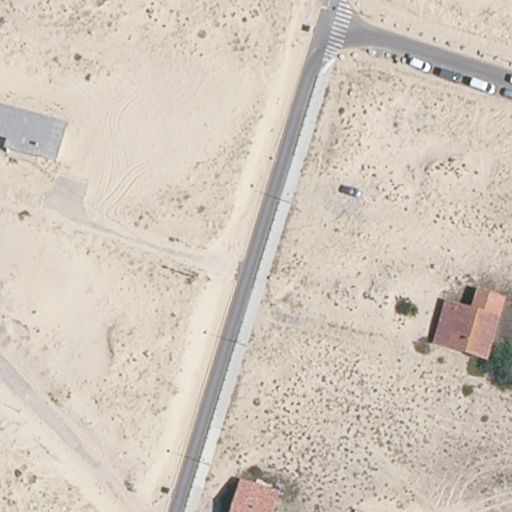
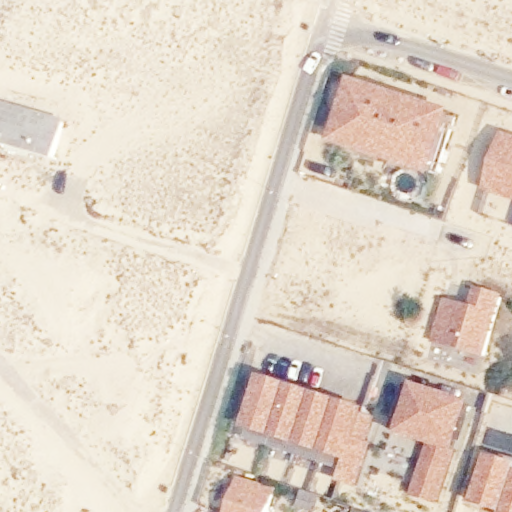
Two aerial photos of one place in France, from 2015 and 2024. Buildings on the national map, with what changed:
new [(339,149),(357,91),(451,120),(432,178),(407,170),(365,156),(339,149)]
unchanged [(59,125),(50,160),(2,150),(4,137),(0,136),(0,107),(59,125)]
new [(512,194),(497,189),(501,177),(512,145),(512,194)]
demolished [(287,286),(312,291),(307,307),(285,301),(287,286)]
unchanged [(436,304),(463,313),(470,295),(491,301),(472,356),(424,341),(436,304)]
new [(371,413),(363,439),(374,443),(359,493),(342,487),(348,464),(245,433),(261,380),(371,413)]
new [(475,403),(459,457),(442,506),(416,500),(430,447),(398,439),(415,385),(475,403)]
new [(512,465),(512,492),(505,512),(488,512),(473,507),(488,457),(512,465)]
unchanged [(227,512),(237,482),(270,493),(264,512),(227,512)]
new [(512,512),(505,512),(512,492),(512,512)]

